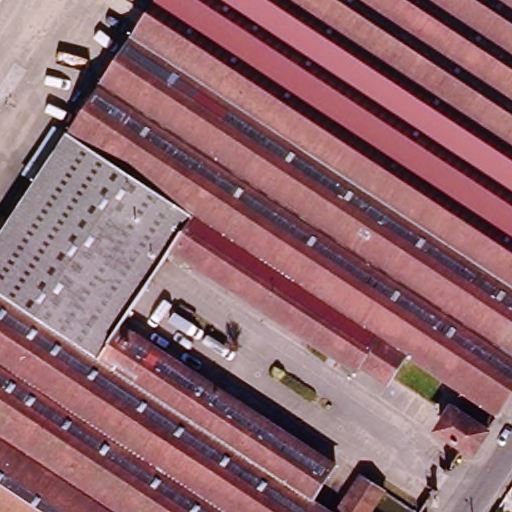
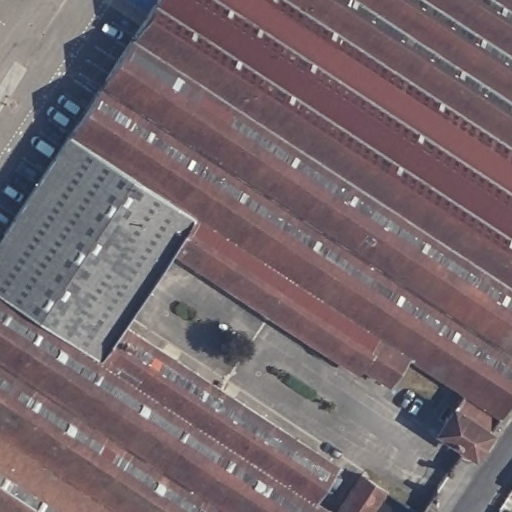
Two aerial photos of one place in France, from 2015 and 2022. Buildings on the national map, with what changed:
unchanged [(405,353),(386,380),(360,362),(355,369),(256,305),(168,245),(171,240),(128,212),(147,182),(66,128),(150,0),(512,0),(512,391),(497,414),(487,428),(474,449),(466,450),(462,447),(440,432),(436,426),(451,404),(460,390),(405,353)]
unchanged [(66,128),(147,182),(128,212),(171,240),(168,245),(120,321),(333,462),(310,497),(332,512),(0,512),(0,230),(66,128)]
unchanged [(368,512),(335,512),(360,474),(382,490),(368,512)]

